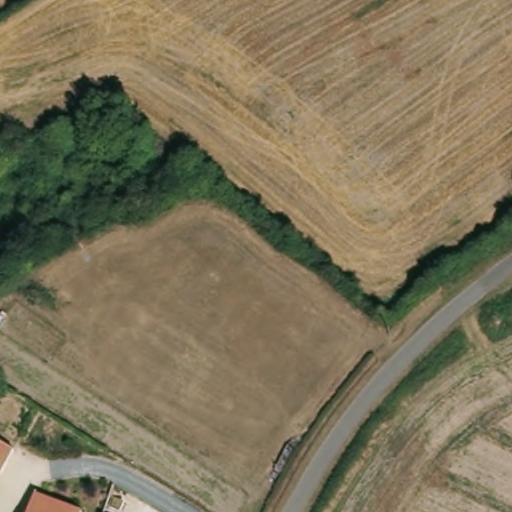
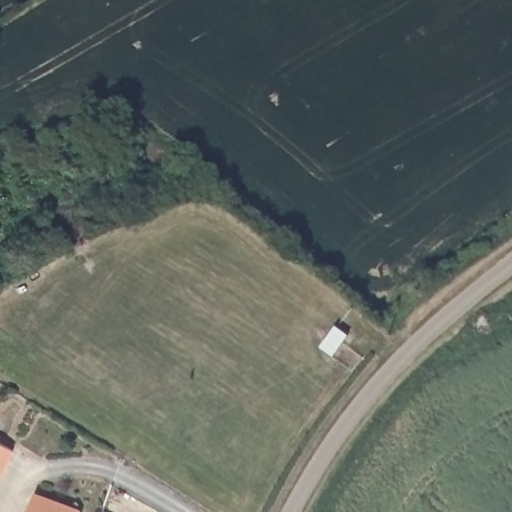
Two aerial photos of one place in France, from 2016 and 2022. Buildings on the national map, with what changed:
unchanged [(13,451),(0,475),(0,444),(13,451)]
unchanged [(35,495),(81,512),(29,512),(35,495)]

